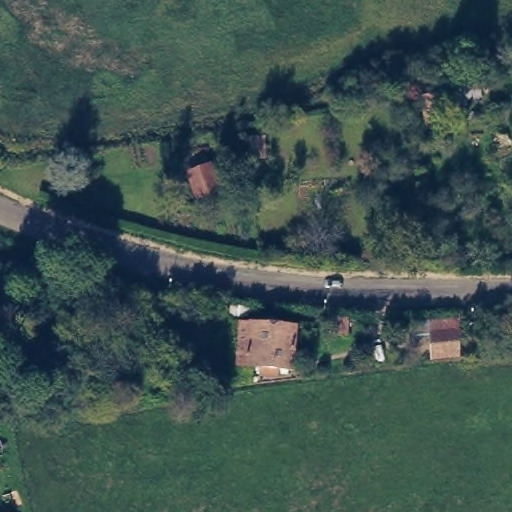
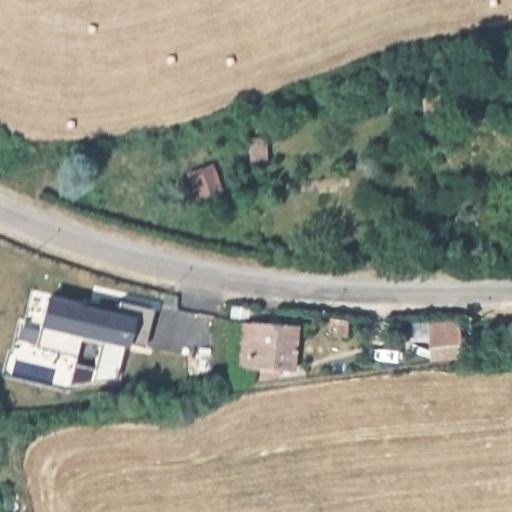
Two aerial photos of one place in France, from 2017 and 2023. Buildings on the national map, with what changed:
unchanged [(447,111),(425,116),(422,100),(443,95),(447,111)]
unchanged [(221,183),(224,182),(225,187),(204,196),(197,177),(215,169),(221,183)]
new [(144,347),(109,341),(107,350),(78,343),(75,355),(35,347),(45,301),(116,316),(119,303),(151,310),(144,347)]
unchanged [(262,368),(262,363),(237,361),(240,318),(270,321),(270,316),(277,316),(277,321),(297,323),(293,366),(274,365),(273,370),(262,368)]
unchanged [(459,355),(435,357),(433,333),(457,331),(459,355)]

